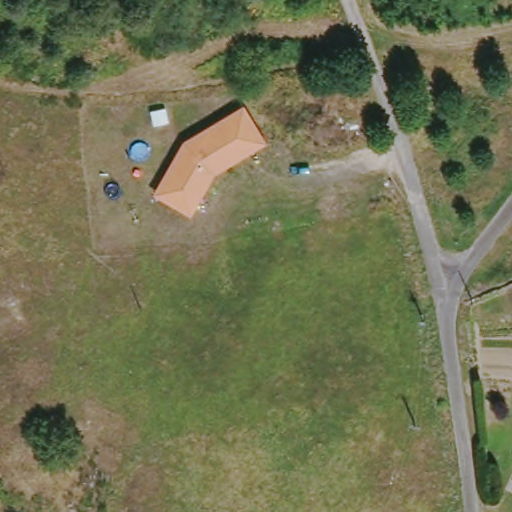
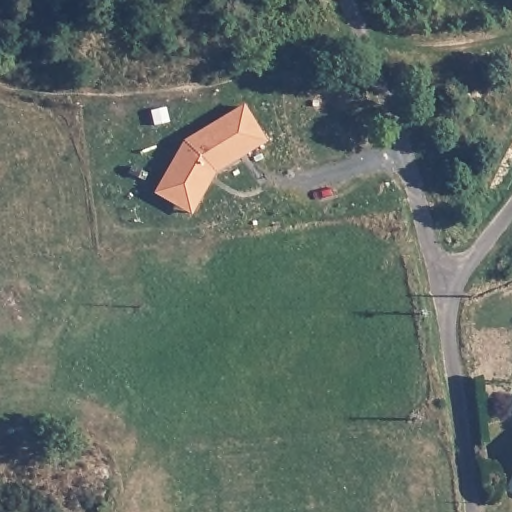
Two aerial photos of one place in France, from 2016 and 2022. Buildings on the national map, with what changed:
unchanged [(198,201),(167,183),(187,145),(246,108),(267,144),(218,174),(213,172),(198,201)]

